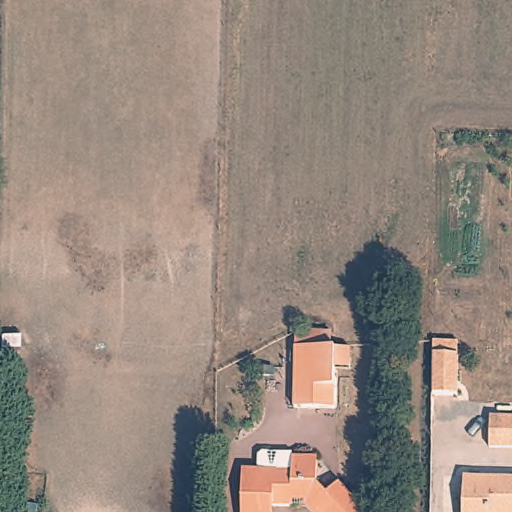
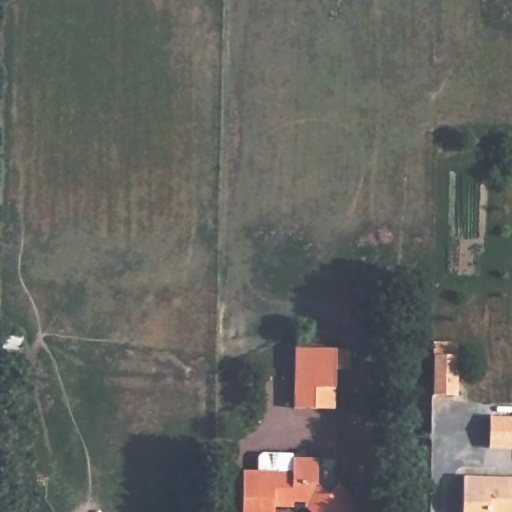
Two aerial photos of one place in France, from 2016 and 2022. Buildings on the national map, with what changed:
unchanged [(295,413),(295,352),(295,331),(333,331),(334,353),(352,353),(352,373),(334,372),(335,413),(295,413)]
unchanged [(433,394),(435,340),(459,340),(458,394),(433,394)]
unchanged [(512,450),(488,449),(489,416),(512,416),(512,450)]
unchanged [(261,463),(265,460),(294,460),(294,467),(313,467),(319,474),(320,494),(327,503),(339,492),(358,512),(273,512),(273,503),(260,502),(260,477),(261,477),(261,463)]
unchanged [(273,512),(244,512),(244,477),(260,477),(260,502),(273,503),(273,512)]
unchanged [(512,512),(463,512),(464,483),(512,483),(512,512)]

